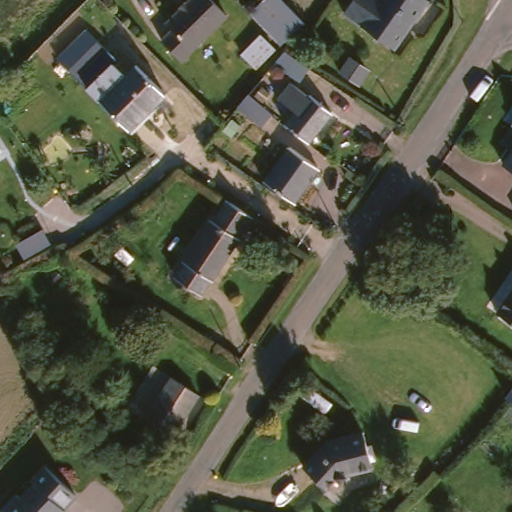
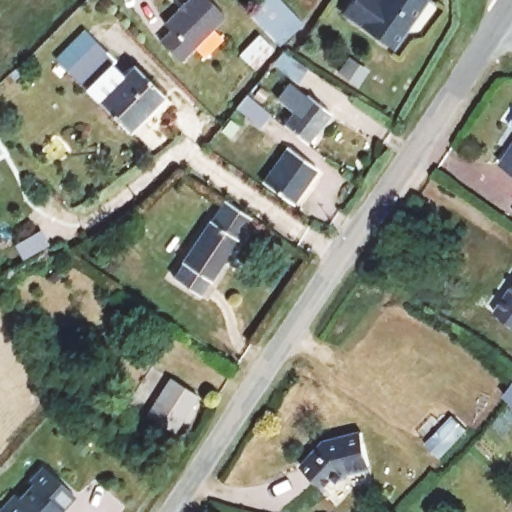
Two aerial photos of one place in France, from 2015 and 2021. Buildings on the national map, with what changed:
unchanged [(169,27),(197,0),(211,0),(230,19),(184,64),(165,44),(176,34),(169,27)]
unchanged [(263,1),(264,0),(279,0),(303,26),(292,36),(280,46),(250,12),(263,1)]
unchanged [(344,0),(416,0),(387,48),(335,16),(344,0)]
unchanged [(87,90),(54,58),(85,26),(118,61),(112,66),(87,90)]
unchanged [(112,66),(125,79),(134,71),(163,99),(131,130),(87,90),(112,66)]
unchanged [(249,108),(240,119),(227,106),(236,96),(249,108)]
unchanged [(307,141),(286,123),(308,96),(330,114),(307,141)]
unchanged [(270,171),(295,136),(324,156),(300,192),(270,171)]
unchanged [(512,138),(512,162),(500,151),(512,138)]
unchanged [(509,198),(512,194),(512,200),(509,198)]
unchanged [(220,206),(247,221),(203,293),(176,276),(220,206)]
unchanged [(512,289),(512,333),(491,317),(512,289)]
unchanged [(500,397),(512,381),(512,406),(500,397)]
unchanged [(172,383),(195,399),(173,429),(150,414),(172,383)]
unchanged [(325,443),(362,431),(372,469),(337,477),(327,489),(302,470),(325,443)]
unchanged [(21,503),(25,507),(39,492),(35,489),(49,475),(76,501),(65,512),(11,512),(21,503)]

